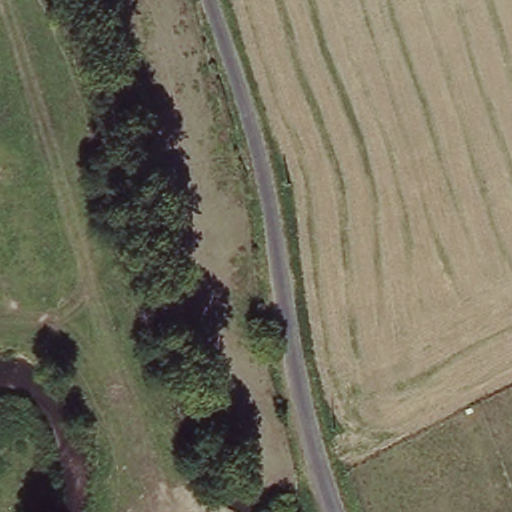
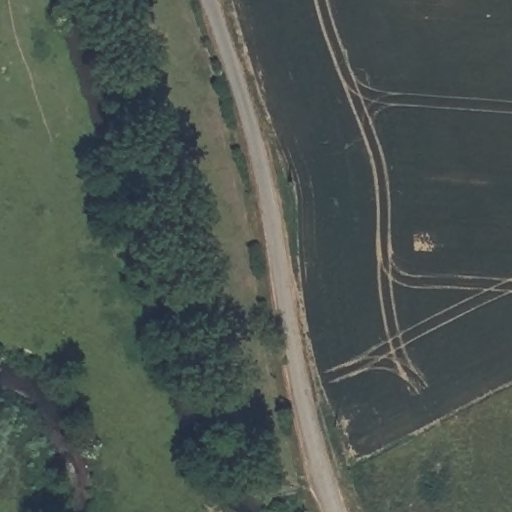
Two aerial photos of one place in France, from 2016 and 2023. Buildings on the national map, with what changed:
[]

